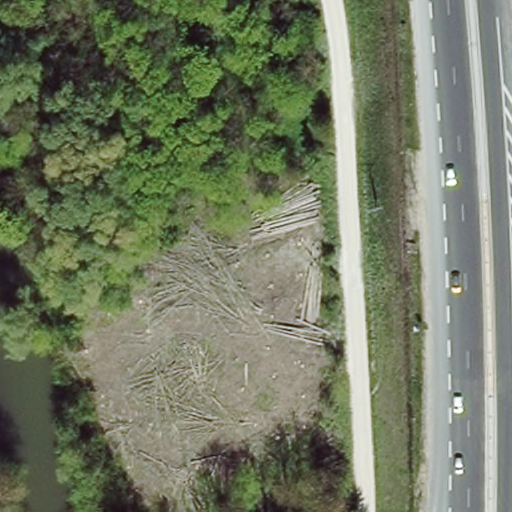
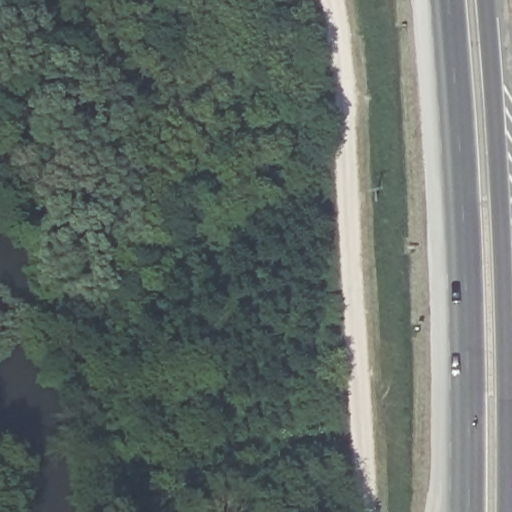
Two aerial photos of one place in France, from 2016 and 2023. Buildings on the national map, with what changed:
[]

